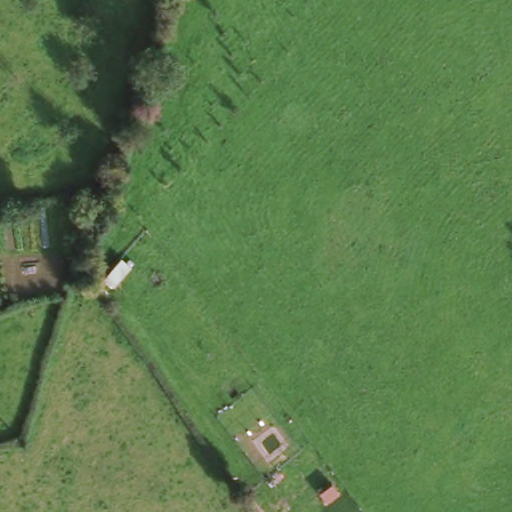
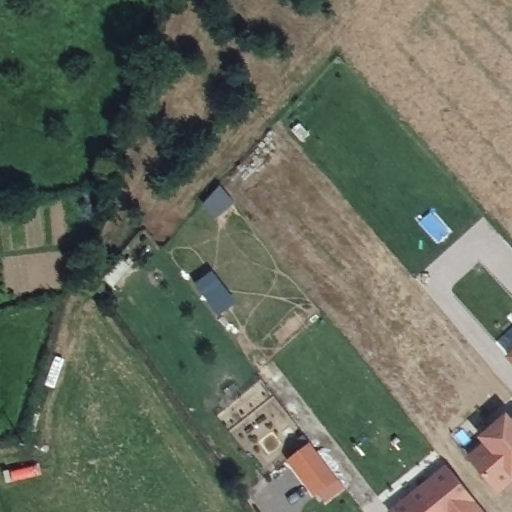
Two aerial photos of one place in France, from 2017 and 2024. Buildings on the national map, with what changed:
new [(508,354),(512,351),(512,359),(508,354)]
new [(495,489),(469,457),(486,443),(481,438),(507,416),(512,421),(512,475),(495,489)]
new [(309,442),(336,479),(314,495),(287,459),(309,442)]
new [(448,468),(483,512),(392,512),(448,468)]
new [(495,489),(512,475),(512,482),(498,493),(495,489)]
new [(336,479),(342,487),(323,501),(317,493),(336,479)]

